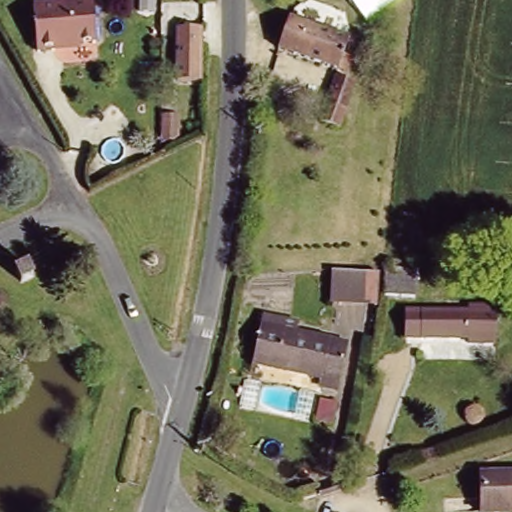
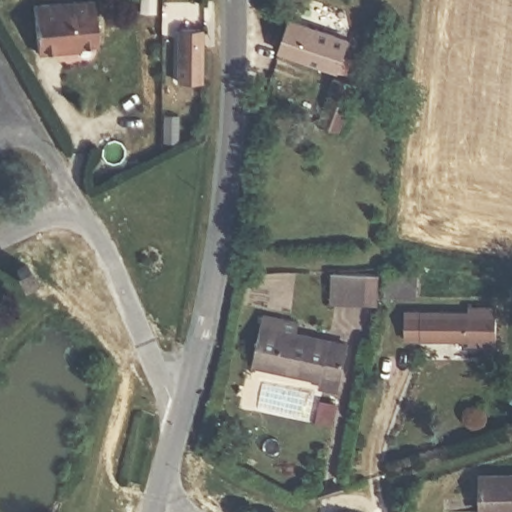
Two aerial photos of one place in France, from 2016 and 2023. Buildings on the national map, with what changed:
unchanged [(49,49),(32,51),(28,4),(76,0),(89,0),(91,42),(74,44),(74,48),(49,49)]
unchanged [(336,31),(356,37),(349,54),(356,56),(350,71),(281,47),(292,16),(305,21),(309,7),(331,15),(341,18),(336,31)]
unchanged [(181,26),(203,27),(203,78),(179,78),(181,26)]
unchanged [(338,75),(358,82),(342,126),(323,120),(338,75)]
unchanged [(390,263),(419,271),(413,302),(384,297),(390,263)]
unchanged [(334,272),(363,270),(369,270),(369,301),(334,302),(334,272)]
unchanged [(473,345),(473,338),(405,339),(405,305),(502,307),(502,345),(473,345)]
unchanged [(321,388),(324,378),(254,364),(267,314),(300,322),(299,332),(354,342),(343,393),(321,388)]
unchanged [(279,389),(337,412),(325,444),(308,438),(311,431),(269,415),(279,389)]
unchanged [(512,472),(512,507),(487,508),(485,473),(512,472)]

